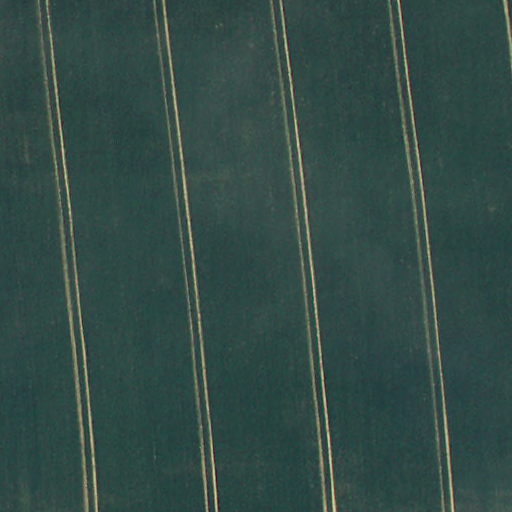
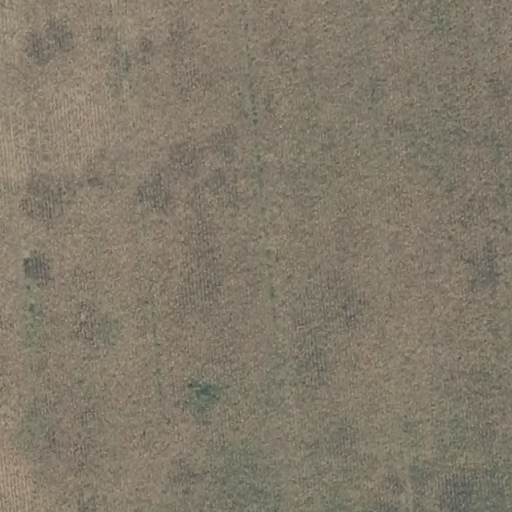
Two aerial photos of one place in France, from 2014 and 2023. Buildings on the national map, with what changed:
[]

